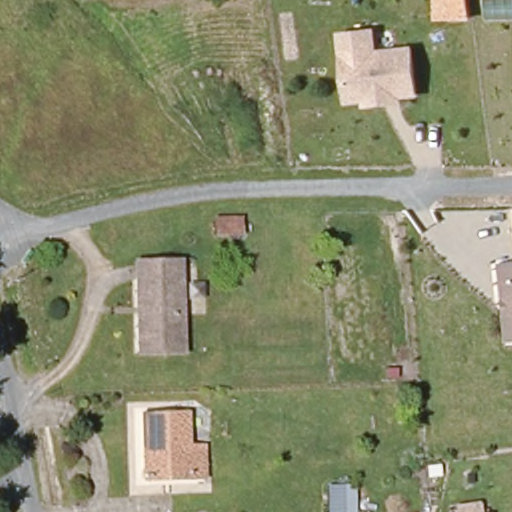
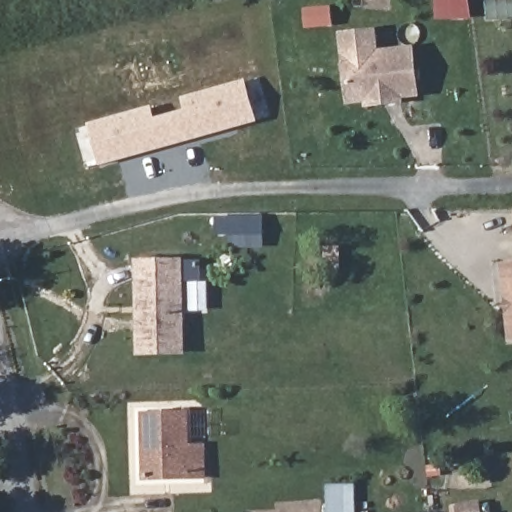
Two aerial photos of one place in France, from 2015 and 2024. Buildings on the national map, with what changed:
unchanged [(421,95),(403,97),(404,101),(373,106),(369,99),(351,102),(341,33),(377,30),(378,50),(416,49),(421,95)]
new [(99,134),(95,122),(148,107),(151,119),(190,108),(187,96),(245,80),(257,122),(100,167),(91,136),(99,134)]
new [(262,246),(235,247),(234,236),(217,236),(217,216),(263,216),(262,246)]
unchanged [(141,347),(140,260),(186,258),(186,347),(141,347)]
unchanged [(512,262),(512,335),(506,262),(512,262)]
unchanged [(207,482),(191,482),(152,483),(150,418),(191,417),(191,452),(207,452),(207,482)]
unchanged [(361,512),(331,512),(331,484),(361,485),(361,512)]

